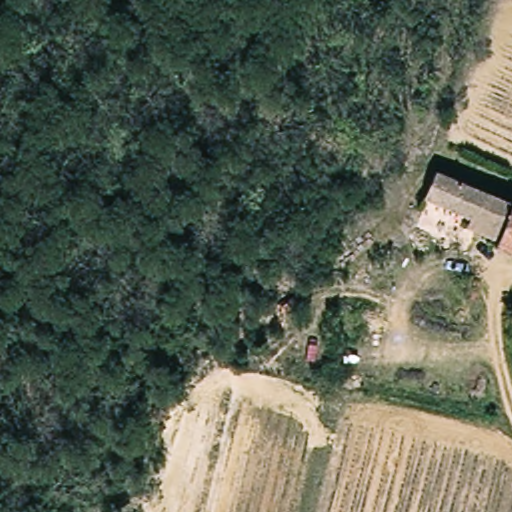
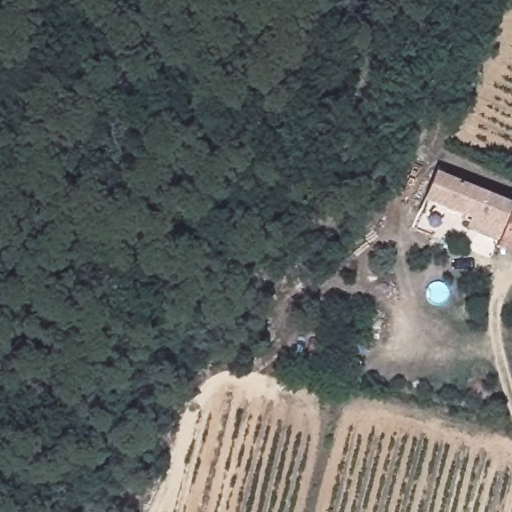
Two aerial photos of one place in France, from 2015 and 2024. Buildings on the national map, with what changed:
unchanged [(412,185),(423,160),(512,199),(512,250),(482,237),(486,228),(447,211),(450,201),(412,185)]

